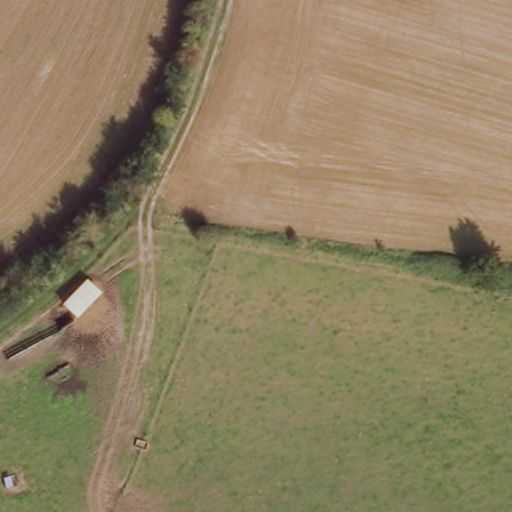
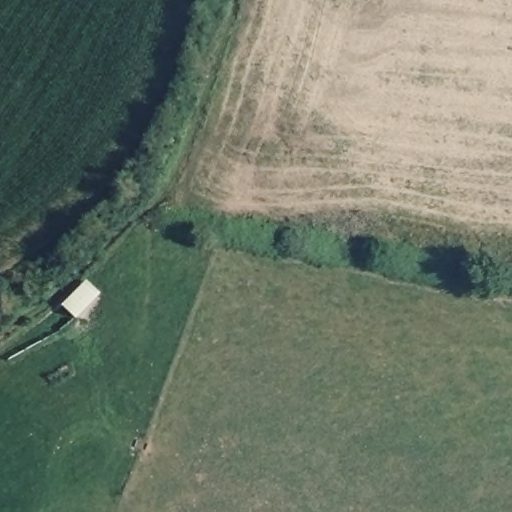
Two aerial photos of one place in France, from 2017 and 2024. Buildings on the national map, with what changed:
unchanged [(80,321),(64,307),(88,281),(106,296),(80,321)]

